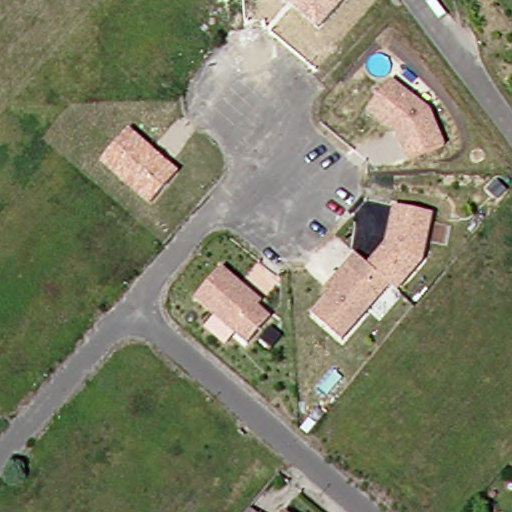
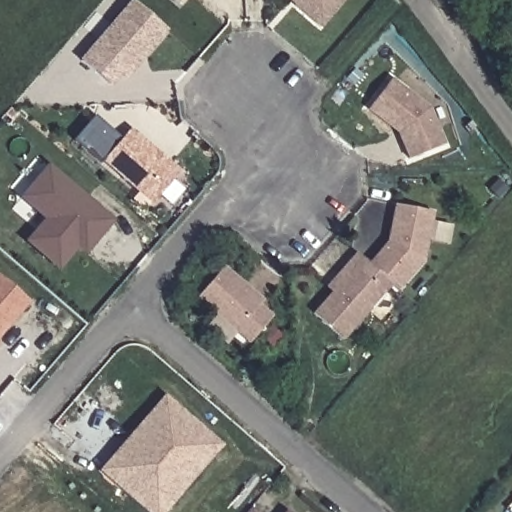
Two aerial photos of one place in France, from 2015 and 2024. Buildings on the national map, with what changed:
new [(132,0),(168,30),(126,80),(121,76),(110,88),(79,60),(131,0),(132,0)]
new [(184,0),(180,4),(175,0),(184,0)]
unchanged [(344,0),(320,28),(286,0),(344,0)]
unchanged [(432,111),(447,148),(411,162),(401,135),(370,110),(395,80),(432,111)]
new [(94,115),(121,140),(104,160),(100,163),(74,140),(94,115)]
unchanged [(104,160),(131,129),(179,173),(151,204),(104,160)]
new [(78,245),(58,268),(28,241),(46,219),(22,198),(49,167),(111,222),(100,235),(86,252),(78,245)]
unchanged [(387,244),(395,207),(433,215),(423,263),(398,292),(391,287),(374,272),(368,267),(387,244)]
unchanged [(368,267),(374,272),(391,287),(343,343),(313,317),(337,289),(335,279),(355,256),(368,267)]
unchanged [(264,299),(260,303),(273,314),(250,341),(197,297),(224,265),(264,299)]
new [(0,275),(30,301),(8,326),(1,335),(0,336),(0,275)]
unchanged [(284,334),(274,345),(264,336),(273,325),(284,334)]
new [(168,393),(179,403),(128,461),(116,451),(168,393)]
new [(116,451),(128,461),(179,403),(213,433),(162,490),(176,501),(166,512),(148,512),(101,469),(116,451)]
new [(213,433),(226,444),(176,501),(162,490),(213,433)]
unchanged [(261,512),(253,512),(256,508),(261,512)]
unchanged [(293,512),(292,512),(292,511),(293,512)]

